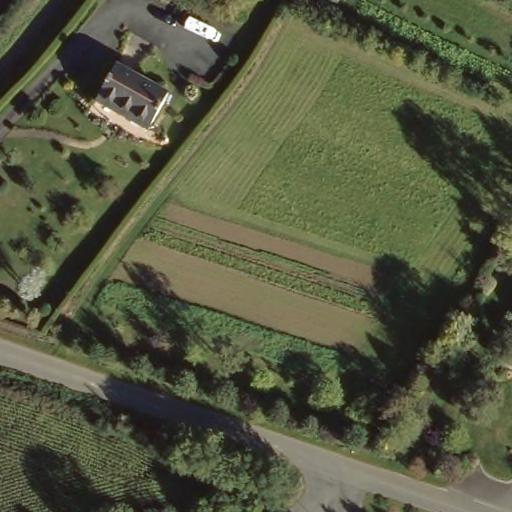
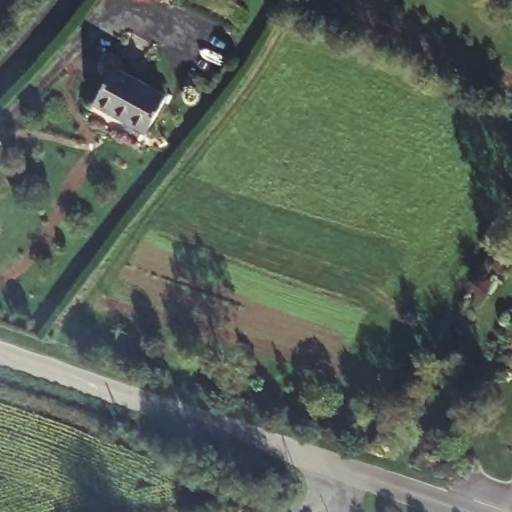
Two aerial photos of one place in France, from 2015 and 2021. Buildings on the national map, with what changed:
unchanged [(168,85),(149,122),(100,96),(118,59),(168,85)]

